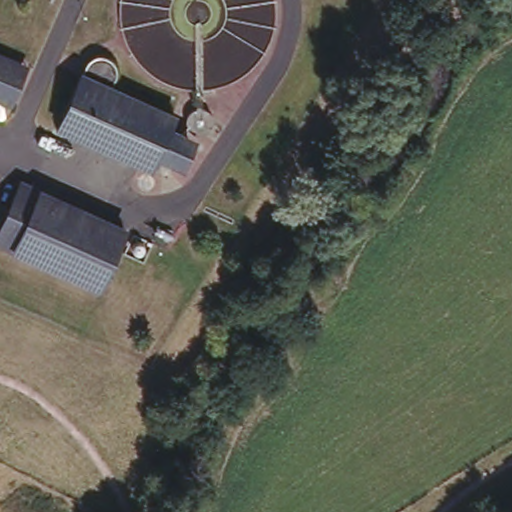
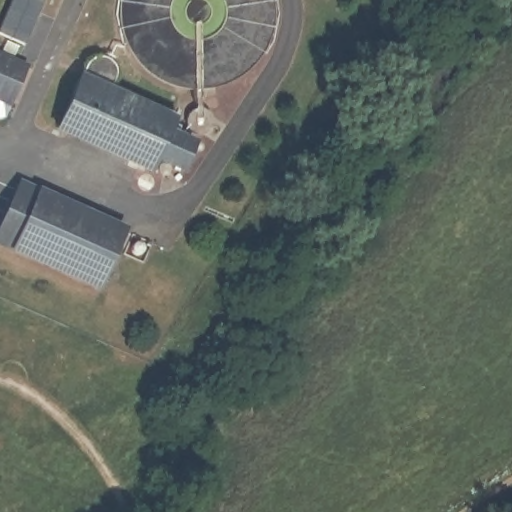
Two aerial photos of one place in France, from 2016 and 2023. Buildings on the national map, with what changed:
new [(10,0),(49,0),(29,44),(0,30),(0,22),(10,0)]
unchanged [(87,51),(94,46),(105,50),(110,53),(115,63),(106,84),(171,115),(166,124),(182,132),(185,138),(184,146),(181,155),(174,159),(170,160),(156,153),(152,161),(57,120),(87,51)]
unchanged [(25,66),(6,102),(0,99),(0,54),(25,66)]
unchanged [(125,222),(101,282),(0,241),(0,226),(19,179),(125,222)]

